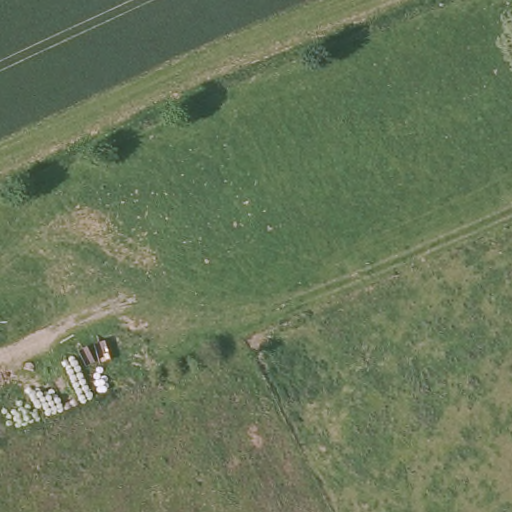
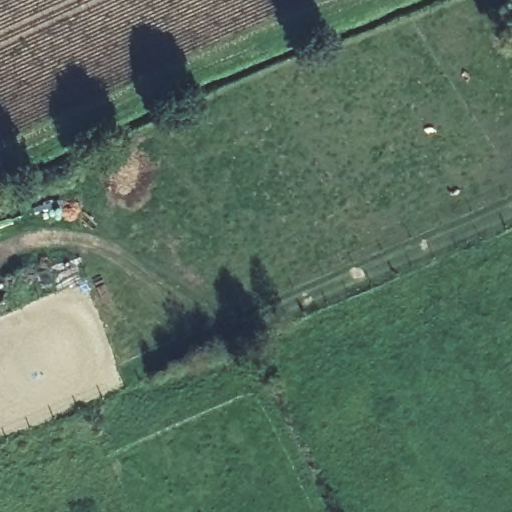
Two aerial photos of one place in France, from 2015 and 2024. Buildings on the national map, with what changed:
[]

